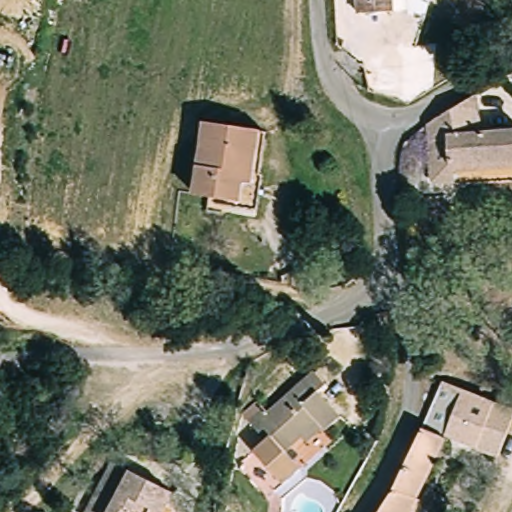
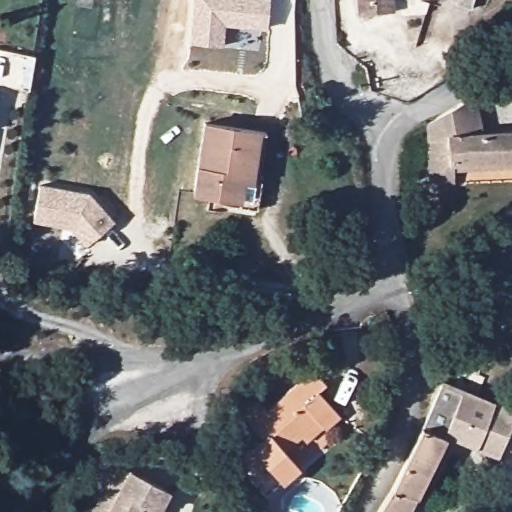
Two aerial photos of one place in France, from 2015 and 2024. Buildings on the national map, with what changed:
new [(267,28),(225,25),(223,46),(190,45),(194,0),(270,0),(267,28)]
unchanged [(395,12),(360,15),(359,0),(394,0),(395,12)]
new [(471,11),(456,6),(457,4),(444,0),(474,0),(471,11)]
unchanged [(481,105),(480,136),(512,134),(512,163),(455,165),(452,186),(432,185),(432,117),(443,104),(445,102),(445,119),(481,105)]
unchanged [(222,205),(222,192),(192,191),(196,118),(253,123),(249,174),(256,174),(254,205),(222,205)]
new [(90,194),(115,222),(87,247),(70,229),(33,223),(41,186),(90,194)]
unchanged [(304,435),(284,452),(300,470),(281,486),(253,453),(260,446),(247,431),(316,370),(327,382),(316,390),(342,417),(332,426),(312,444),(304,435)]
unchanged [(478,451),(444,431),(420,424),(442,382),(495,404),(478,451)]
unchanged [(477,452),(478,451),(495,404),(512,411),(512,432),(500,461),(477,452)]
unchanged [(420,425),(420,424),(444,431),(415,512),(381,512),(399,463),(420,425)]
unchanged [(102,512),(115,484),(123,468),(141,476),(186,497),(178,512),(102,512)]

